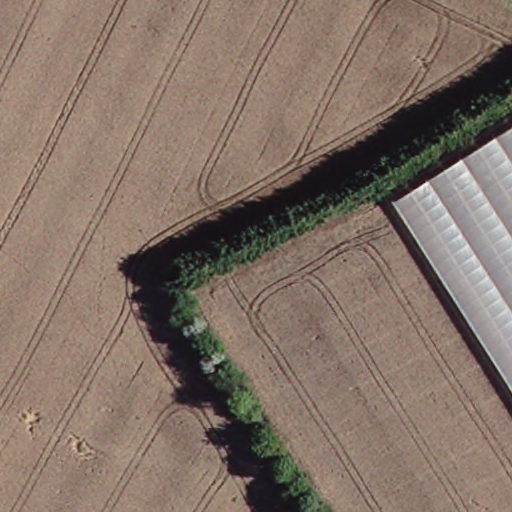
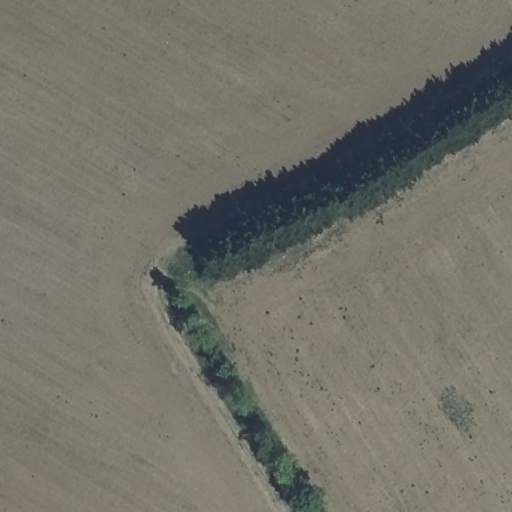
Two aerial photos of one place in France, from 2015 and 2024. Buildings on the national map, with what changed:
demolished [(390,204),(512,125),(512,395),(390,204)]

